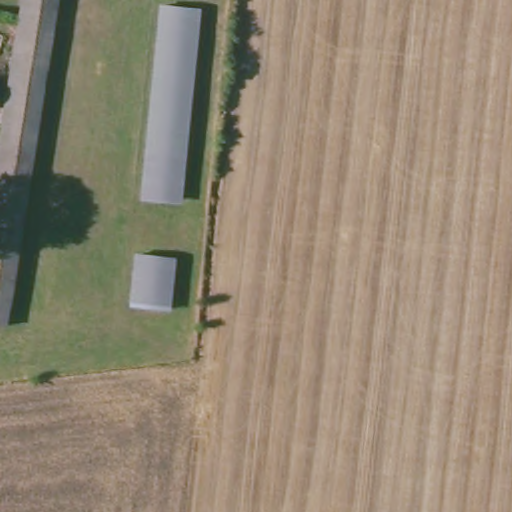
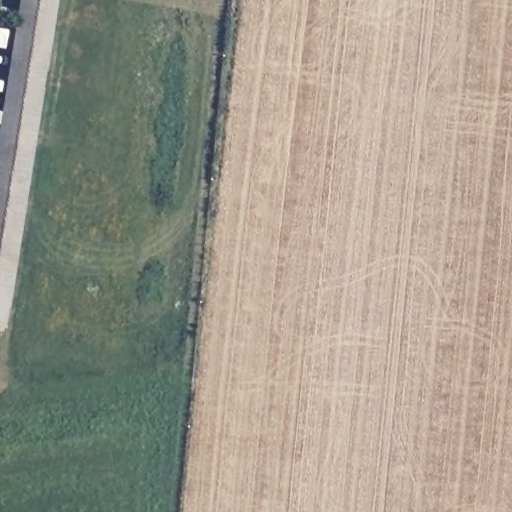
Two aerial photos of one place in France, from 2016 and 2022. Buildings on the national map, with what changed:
unchanged [(18,0),(54,0),(3,322),(0,322),(0,100),(18,0)]
demolished [(134,200),(155,2),(197,5),(178,204),(134,200)]
demolished [(168,308),(124,303),(129,253),(173,258),(168,308)]

